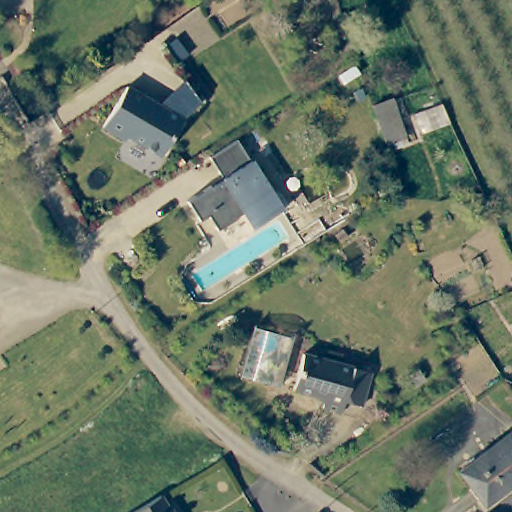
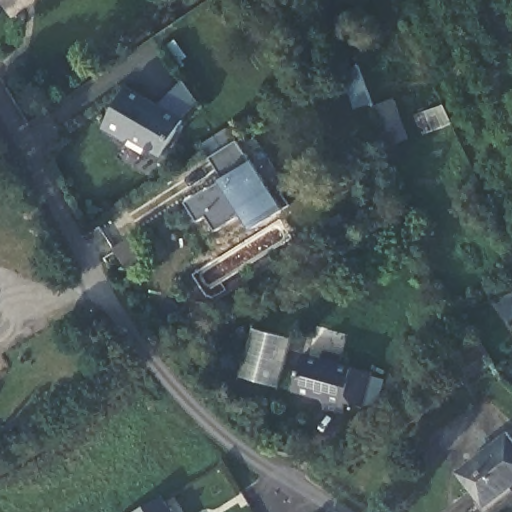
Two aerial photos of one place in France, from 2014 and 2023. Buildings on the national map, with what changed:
unchanged [(135,137),(132,143),(104,127),(127,86),(188,120),(168,156),(135,137)]
unchanged [(410,139),(387,150),(371,105),(392,100),(410,139)]
unchanged [(238,144),(240,142),(287,210),(261,229),(250,214),(242,219),(244,219),(225,233),(215,219),(207,224),(193,205),(216,189),(217,189),(228,182),(214,160),(238,144)]
unchanged [(344,219),(372,260),(352,274),(323,234),(344,219)]
unchanged [(327,398),(299,391),(308,355),(376,374),(366,410),(351,404),(346,417),(323,409),(327,398)]
unchanged [(486,504),(462,470),(510,437),(512,439),(512,485),(486,504)]
unchanged [(174,512),(132,512),(166,496),(174,512)]

